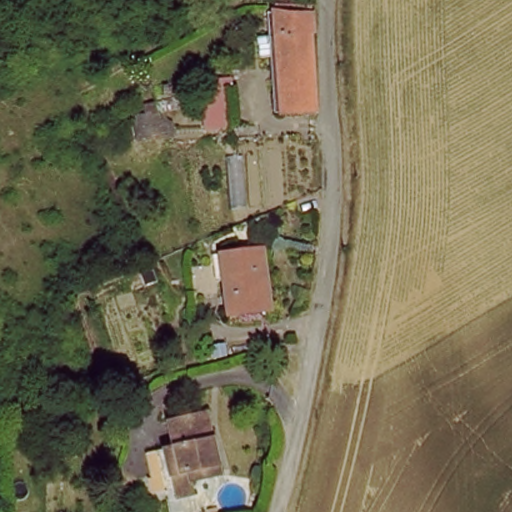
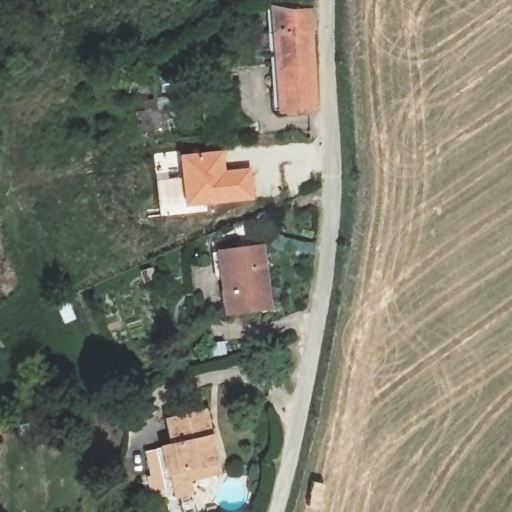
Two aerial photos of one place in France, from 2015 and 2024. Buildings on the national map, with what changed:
unchanged [(274,104),(265,20),(265,0),(274,0),(291,7),(312,9),(319,101),(274,104)]
new [(222,150),(225,170),(251,167),(255,201),(185,211),(177,155),(222,150)]
new [(177,151),(177,155),(185,211),(159,216),(152,154),(177,151)]
unchanged [(225,315),(222,244),(270,242),(274,311),(225,315)]
unchanged [(170,490),(167,467),(162,442),(173,438),(168,413),(207,406),(219,467),(190,472),(192,485),(170,490)]

